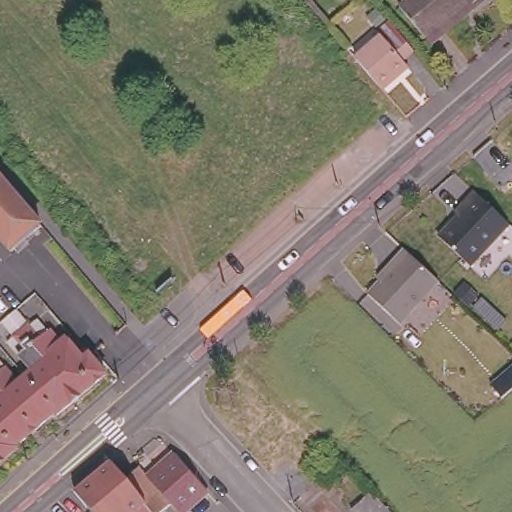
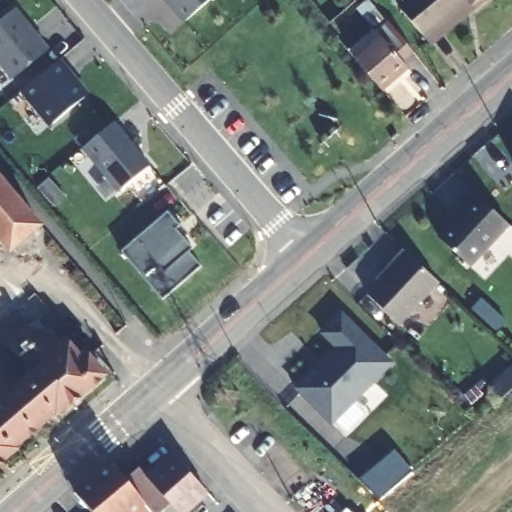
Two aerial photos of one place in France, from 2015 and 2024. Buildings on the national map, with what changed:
new [(167,0),(207,0),(183,20),(167,0)]
unchanged [(469,7),(427,43),(400,11),(412,0),(485,0),(472,11),(469,7)]
new [(11,77),(0,64),(0,22),(17,8),(50,47),(11,77)]
unchanged [(407,54),(396,64),(401,70),(375,93),(349,63),(375,41),(371,36),(382,27),(407,54)]
new [(49,125),(20,91),(62,59),(90,92),(49,125)]
new [(118,190),(83,147),(115,120),(151,164),(118,190)]
unchanged [(6,251),(0,244),(0,175),(40,222),(6,251)]
unchanged [(454,212),(472,192),(510,226),(471,267),(438,236),(457,214),(454,212)]
new [(162,298),(122,250),(168,211),(188,232),(183,236),(192,247),(187,251),(201,265),(162,298)]
unchanged [(375,278),(403,249),(440,283),(402,325),(367,293),(378,281),(375,278)]
new [(320,372),(323,376),(331,368),(328,365),(343,350),(327,335),(347,316),(395,366),(339,422),(333,422),(301,390),(320,372)]
unchanged [(21,321),(30,332),(40,324),(50,336),(51,334),(57,342),(58,342),(65,349),(69,345),(86,365),(92,360),(96,365),(101,365),(105,371),(105,376),(109,380),(110,381),(81,405),(15,327),(21,321)]
unchanged [(81,405),(60,422),(58,419),(25,380),(30,377),(20,365),(28,358),(7,333),(15,327),(81,405)]
unchanged [(39,436),(0,389),(0,379),(0,380),(10,373),(20,384),(25,380),(58,419),(39,436)]
unchanged [(0,431),(0,389),(39,436),(18,453),(0,431)]
unchanged [(18,453),(20,456),(1,472),(0,471),(0,431),(18,453)]
unchanged [(76,492),(110,462),(126,479),(140,468),(171,504),(160,512),(93,512),(76,492)]
unchanged [(1,472),(0,473),(0,471),(1,472)]
unchanged [(367,484),(392,512),(360,512),(350,500),(367,484)]

